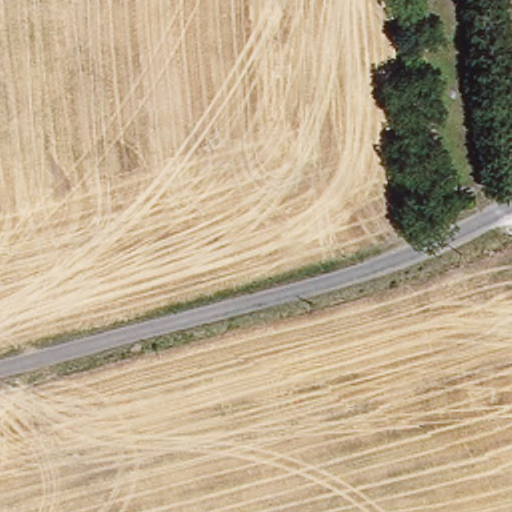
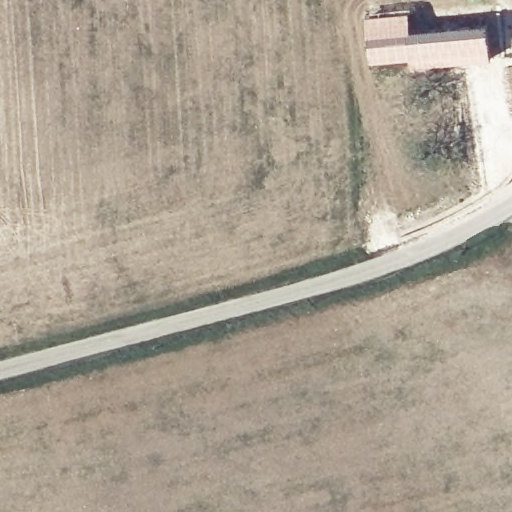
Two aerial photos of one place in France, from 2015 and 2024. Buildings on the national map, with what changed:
new [(411,10),(413,29),(489,22),(491,60),(412,68),(411,58),(371,62),(367,15),(411,10)]

